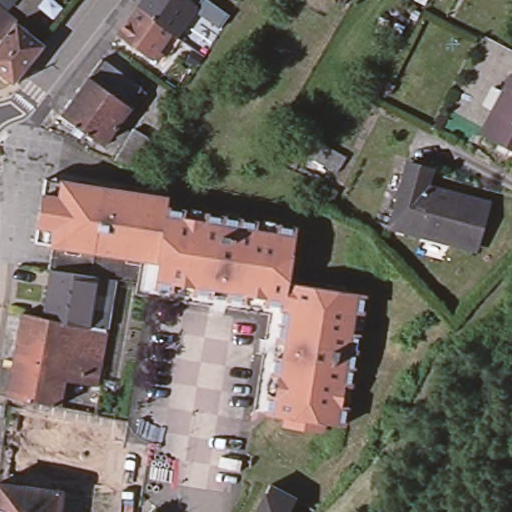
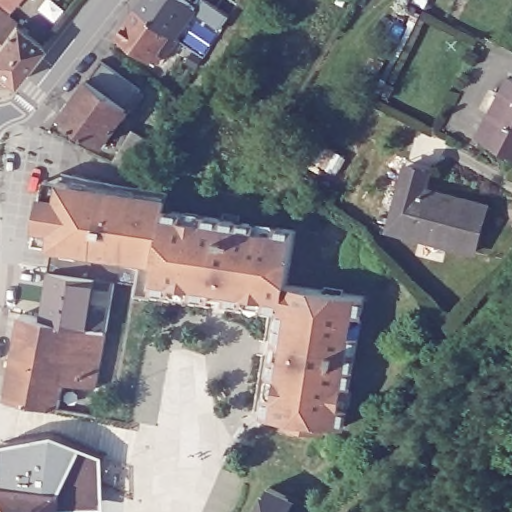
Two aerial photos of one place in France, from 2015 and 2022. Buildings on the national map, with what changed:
unchanged [(45,16),(25,0),(56,0),(45,16)]
unchanged [(191,22),(187,19),(182,15),(168,35),(136,12),(144,0),(178,0),(187,6),(187,7),(192,11),(190,14),(194,17),(191,22)]
unchanged [(217,12),(225,17),(218,29),(201,17),(209,6),(217,12)]
unchanged [(16,25),(0,45),(0,12),(16,25)]
unchanged [(159,67),(154,64),(154,65),(149,62),(116,39),(136,12),(168,35),(153,55),(158,59),(162,62),(159,67)]
unchanged [(45,48),(14,87),(12,85),(11,86),(3,85),(0,82),(0,45),(16,25),(45,48)]
unchanged [(187,45),(191,37),(211,50),(206,59),(200,68),(180,55),(185,47),(187,45)]
unchanged [(118,101),(91,81),(104,64),(144,92),(131,111),(118,101)]
unchanged [(118,101),(131,111),(103,149),(63,120),(91,81),(118,101)]
unchanged [(512,82),(512,148),(485,134),(512,82)]
unchanged [(117,164),(136,134),(139,129),(145,132),(142,137),(153,143),(135,171),(117,164)]
unchanged [(397,189),(404,162),(410,164),(427,169),(423,186),(432,188),(485,202),(472,249),(409,232),(387,226),(397,189)]
unchanged [(37,241),(47,179),(63,182),(54,244),(37,241)]
unchanged [(54,244),(63,182),(168,198),(169,199),(167,207),(158,261),(54,244)]
unchanged [(158,261),(167,207),(184,210),(213,214),(242,219),(291,227),(298,227),(289,282),(289,285),(289,286),(285,305),(280,304),(258,301),(215,293),(187,289),(159,285),(155,284),(158,261)]
unchanged [(50,268),(54,244),(158,261),(155,284),(138,282),(119,278),(115,278),(103,276),(74,272),(50,268)]
unchanged [(68,367),(61,405),(52,403),(9,396),(22,333),(25,313),(75,322),(76,321),(67,319),(74,272),(103,276),(115,278),(107,328),(102,358),(70,353),(72,342),(46,337),(42,362),(68,367)]
unchanged [(287,425),(288,415),(282,414),(268,412),(285,305),(289,286),(289,285),(289,282),(290,282),(338,290),(367,294),(363,322),(348,418),(347,425),(327,421),(325,431),(287,425)]
unchanged [(256,410),(268,333),(271,313),(254,311),(231,307),(211,304),(184,300),(153,296),(155,284),(159,285),(187,289),(215,293),(258,301),(280,304),(285,305),(268,412),(256,410)]
new [(3,442),(56,432),(85,447),(104,456),(105,508),(63,509),(65,494),(0,487),(0,475),(3,442)]
unchanged [(272,485),(293,496),(282,512),(257,512),(261,505),(272,485)]
unchanged [(65,494),(62,512),(0,512),(0,487),(65,494)]

